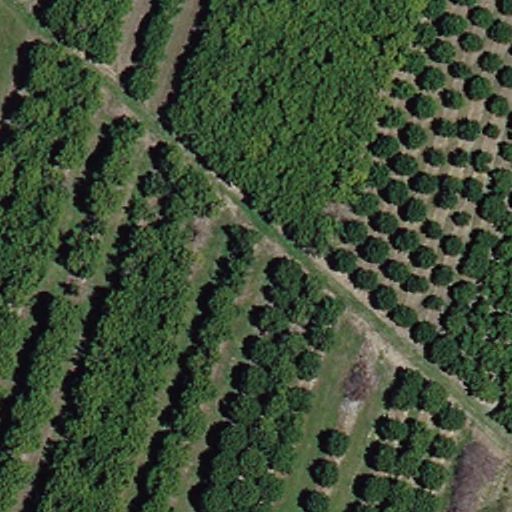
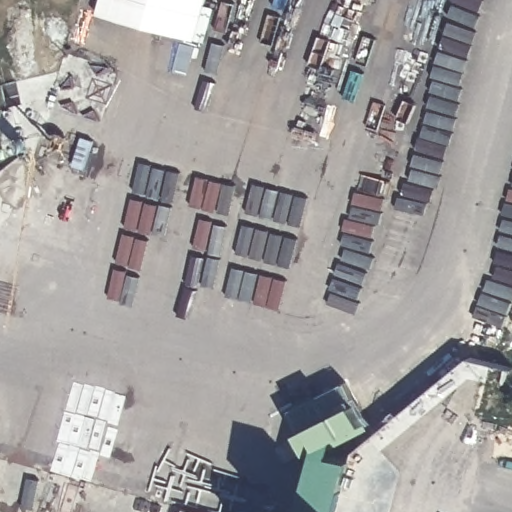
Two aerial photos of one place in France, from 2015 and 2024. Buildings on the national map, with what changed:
new [(193,44),(95,17),(99,0),(205,0),(193,44)]
new [(317,459),(300,431),(292,410),(348,384),(356,404),(367,423),(373,428),(338,447),(337,455),(351,459),(338,512),(336,512),(308,504),(317,459)]
new [(336,512),(305,512),(308,504),(336,512)]

